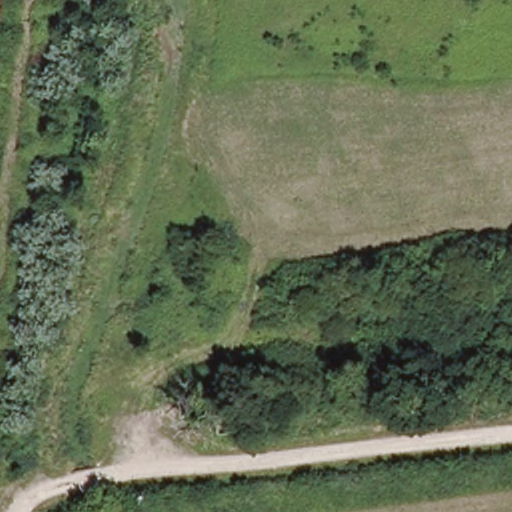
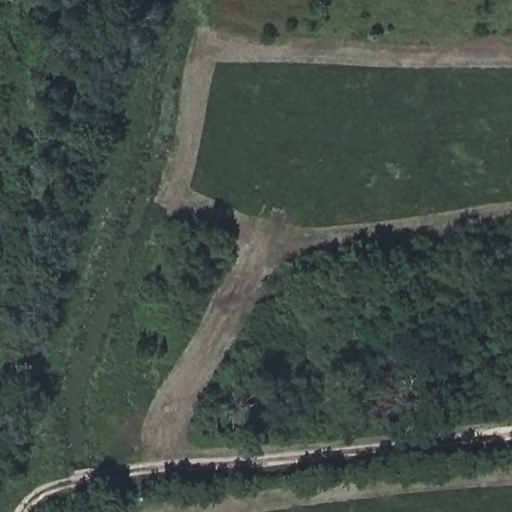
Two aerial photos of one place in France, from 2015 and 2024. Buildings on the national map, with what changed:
unchanged [(239,429),(223,431),(222,408),(238,407),(239,429)]

